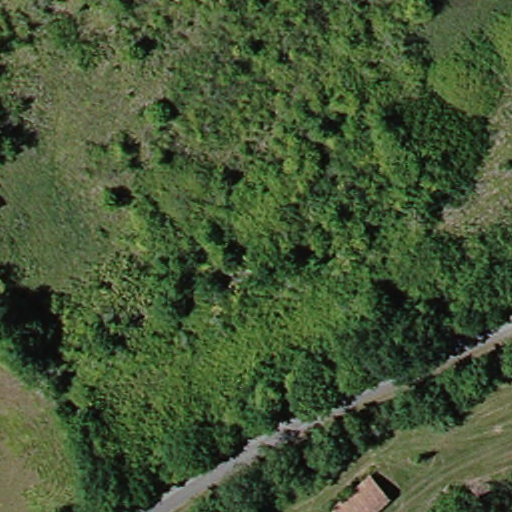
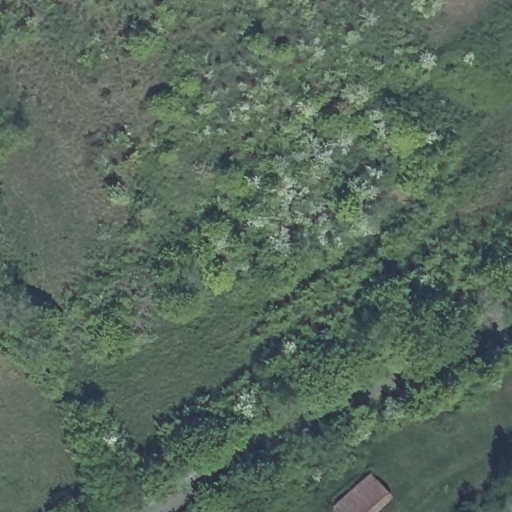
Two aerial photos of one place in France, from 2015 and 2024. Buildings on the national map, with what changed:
unchanged [(338,512),(336,509),(372,477),(390,496),(371,512),(338,512)]

